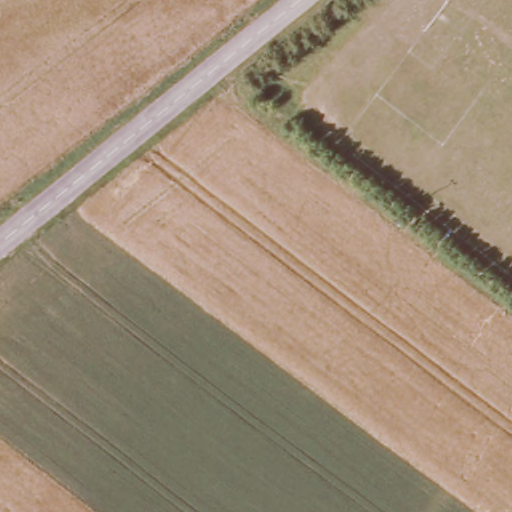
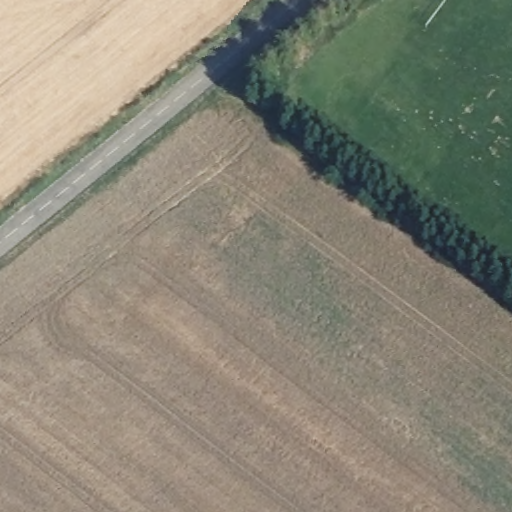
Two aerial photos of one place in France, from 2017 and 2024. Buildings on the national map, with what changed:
unchanged [(512,300),(512,304),(511,302),(512,300)]

